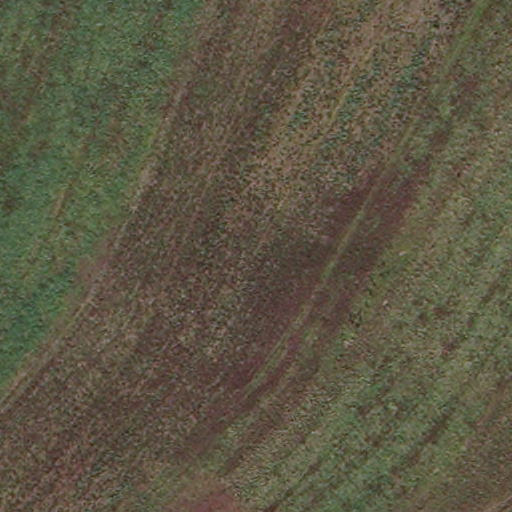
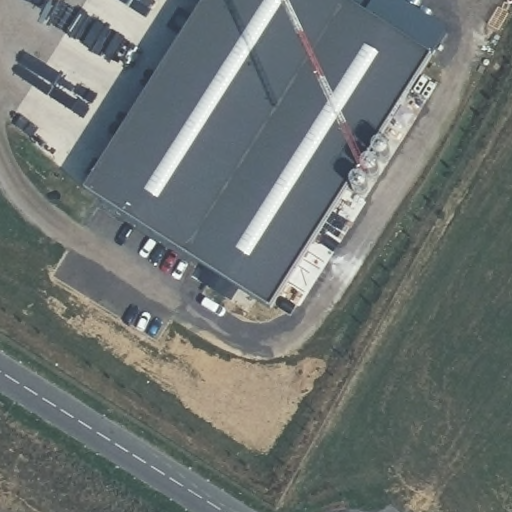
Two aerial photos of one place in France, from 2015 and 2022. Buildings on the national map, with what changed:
new [(219,0),(332,0),(437,66),(275,320),(90,202),(219,0)]

